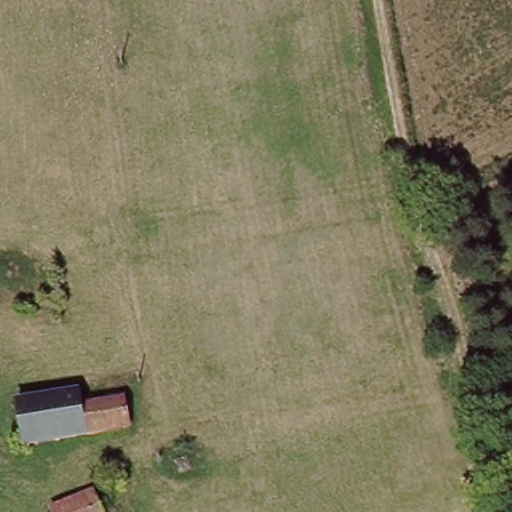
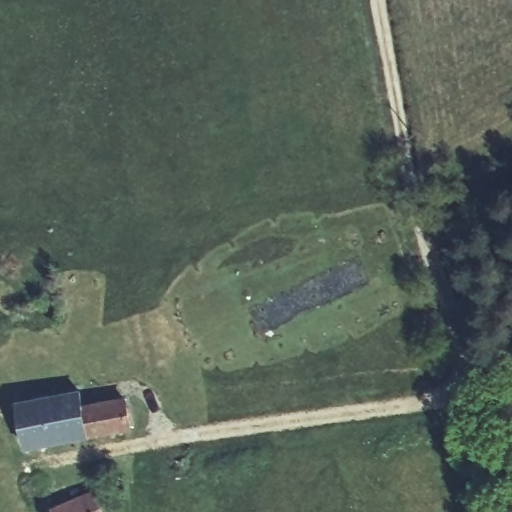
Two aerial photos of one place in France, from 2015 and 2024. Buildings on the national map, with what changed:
unchanged [(80,393),(83,407),(126,399),(132,429),(26,450),(18,405),(80,393)]
unchanged [(50,512),(50,511),(90,494),(97,512),(50,512)]

